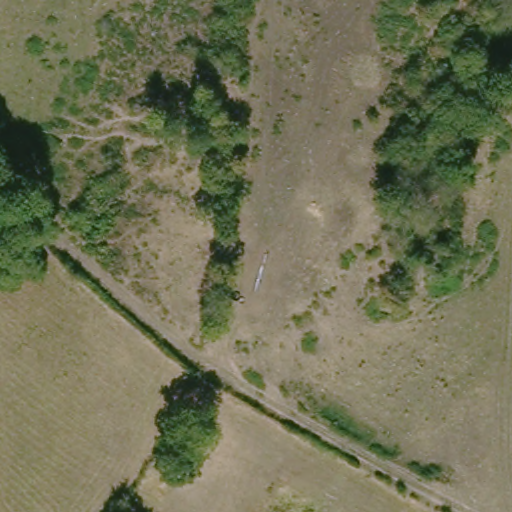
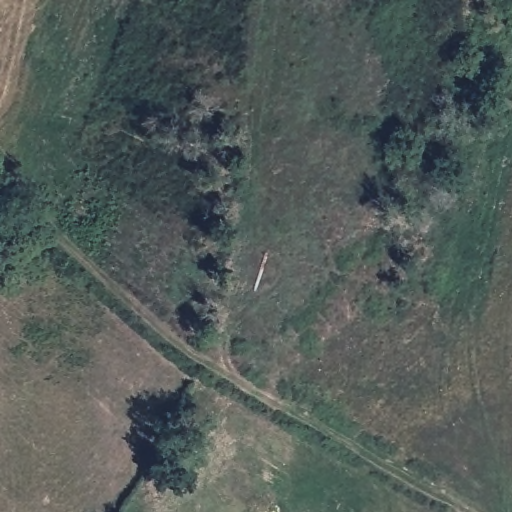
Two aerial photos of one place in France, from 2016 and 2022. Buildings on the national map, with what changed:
[]

